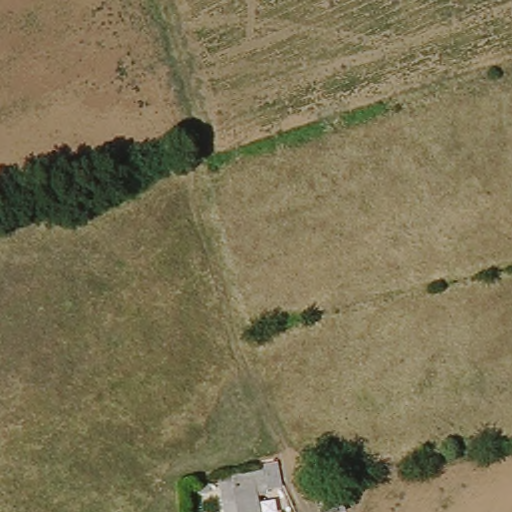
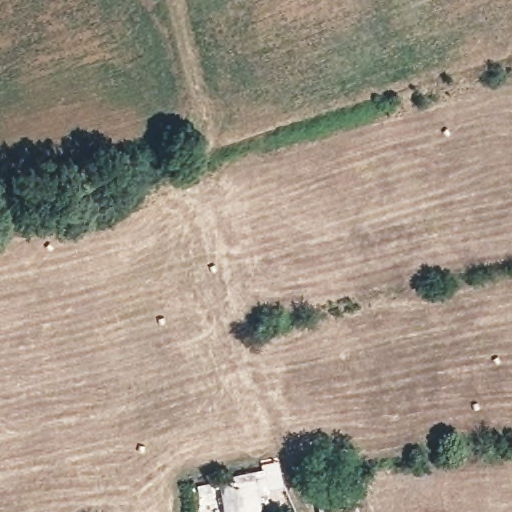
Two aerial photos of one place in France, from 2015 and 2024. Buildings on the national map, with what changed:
unchanged [(261,496),(264,512),(223,512),(219,479),(257,472),(258,459),(277,457),(282,486),(261,496)]
unchanged [(320,512),(311,485),(331,480),(344,512),(320,512)]

